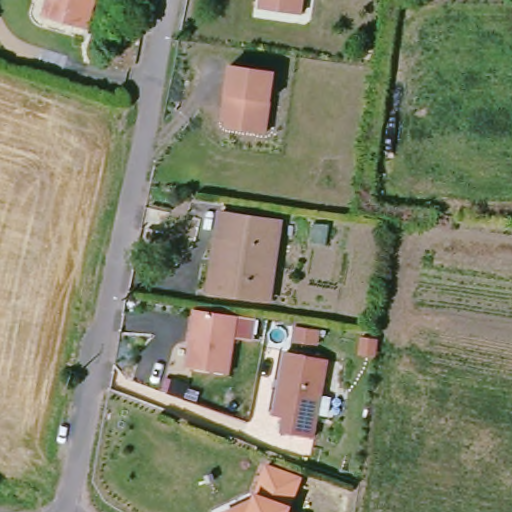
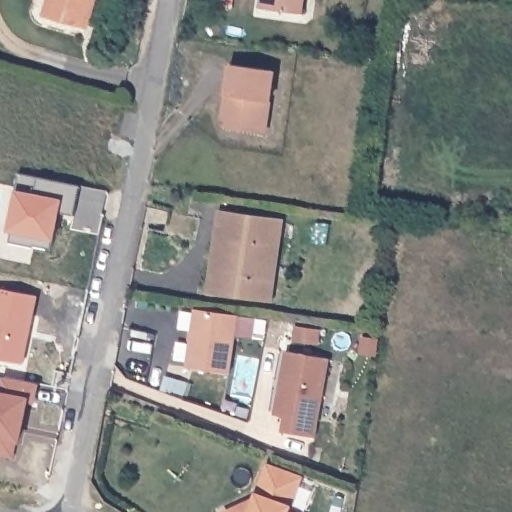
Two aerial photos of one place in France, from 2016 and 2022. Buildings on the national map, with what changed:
unchanged [(40,13),(43,0),(93,0),(85,27),(40,13)]
unchanged [(303,0),(300,14),(272,10),(258,7),(259,0),(303,0)]
unchanged [(223,94),(227,64),(274,72),(263,136),(226,130),(218,129),(223,94)]
new [(13,240),(14,231),(9,231),(17,187),(20,172),(79,185),(74,213),(60,210),(53,242),(52,247),(13,240)]
new [(176,188),(208,192),(204,217),(173,213),(176,188)]
unchanged [(274,220),(262,301),(213,293),(221,243),(211,241),(216,210),(274,220)]
new [(0,358),(0,288),(37,296),(24,363),(0,358)]
unchanged [(239,319),(230,377),(189,372),(198,313),(239,319)]
unchanged [(325,362),(313,442),(281,437),(283,422),(272,421),(282,357),(325,362)]
new [(1,390),(3,377),(40,383),(37,402),(28,402),(22,442),(17,442),(14,457),(0,455),(0,390),(1,390)]
unchanged [(182,402),(174,399),(169,397),(164,396),(163,395),(167,386),(172,388),(186,393),(182,402)]
unchanged [(257,501),(270,467),(303,480),(291,512),(232,512),(241,508),(257,501)]

